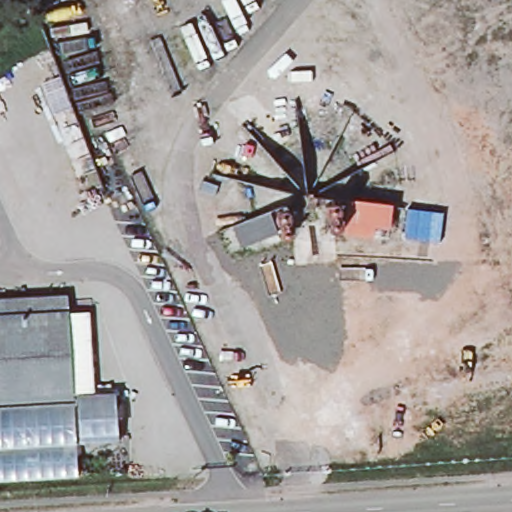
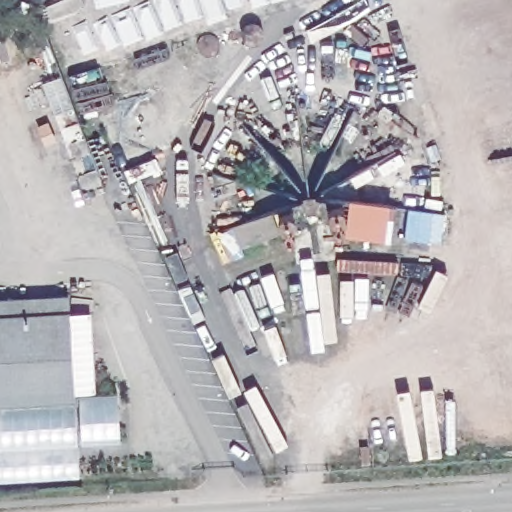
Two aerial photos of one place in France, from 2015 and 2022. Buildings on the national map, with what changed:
unchanged [(396,210),(395,218),(386,217),(385,229),(349,224),(351,204),(387,209),(396,210)]
unchanged [(273,213),(281,233),(246,247),(239,227),(273,213)]
unchanged [(13,300),(26,299),(27,315),(69,313),(75,391),(0,395),(0,317),(14,317),(13,300)]
unchanged [(73,399),(78,471),(0,476),(0,403),(73,399)]

